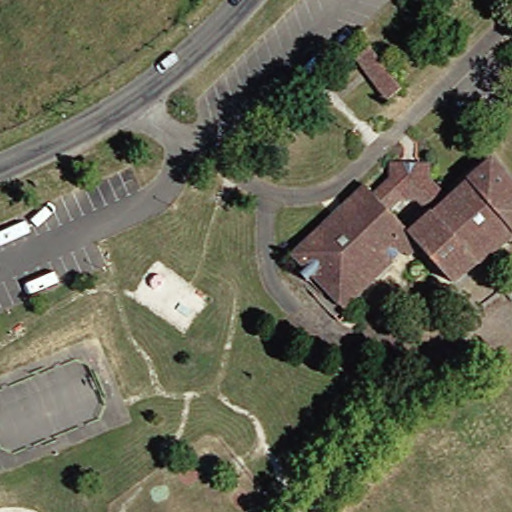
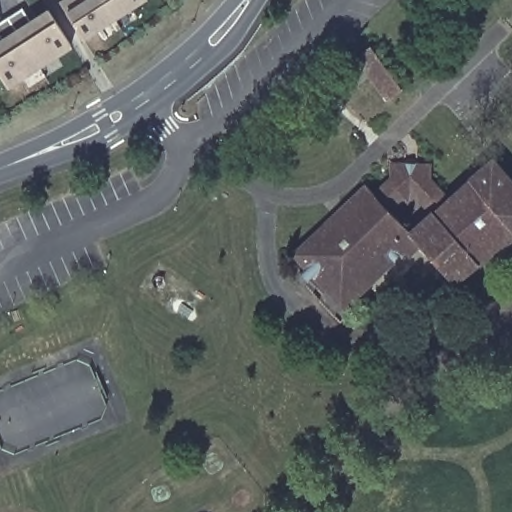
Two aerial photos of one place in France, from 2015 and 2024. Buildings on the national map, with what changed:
new [(85,40),(67,12),(60,2),(63,0),(148,0),(85,40)]
new [(0,75),(0,40),(1,40),(0,37),(0,23),(21,9),(30,21),(48,10),(71,48),(9,89),(0,75)]
unchanged [(398,86),(383,96),(352,53),(367,43),(398,86)]
unchanged [(512,173),(512,245),(484,266),(462,286),(414,232),(499,157),(512,173)]
unchanged [(405,220),(413,229),(402,237),(413,251),(351,311),(298,255),(386,171),(420,206),(405,220)]

